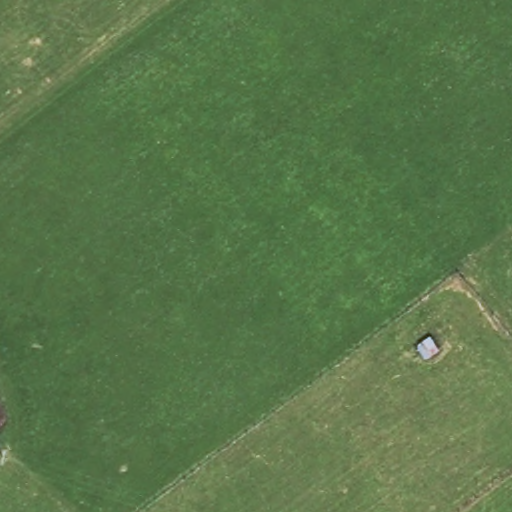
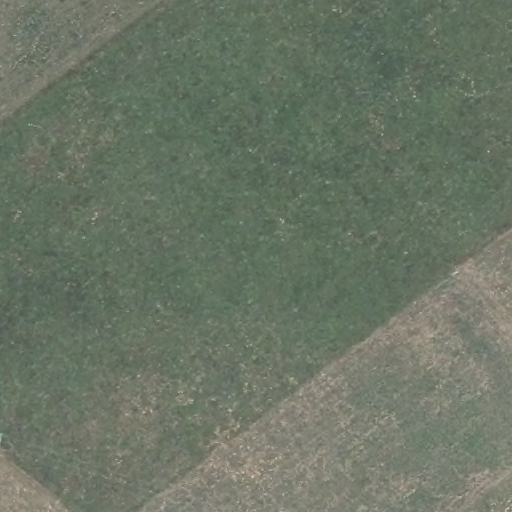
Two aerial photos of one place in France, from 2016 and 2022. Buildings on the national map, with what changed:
unchanged [(440,345),(424,355),(414,342),(430,330),(440,345)]

